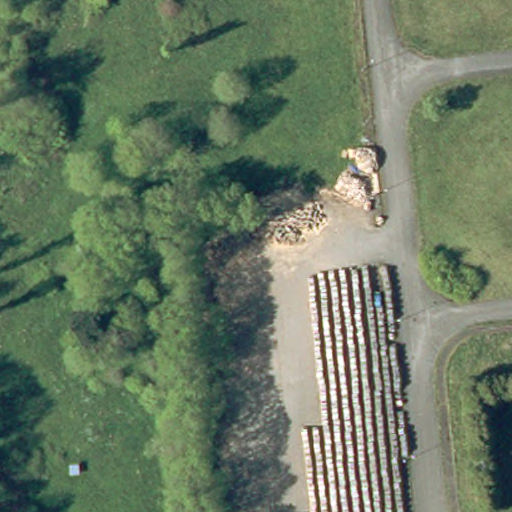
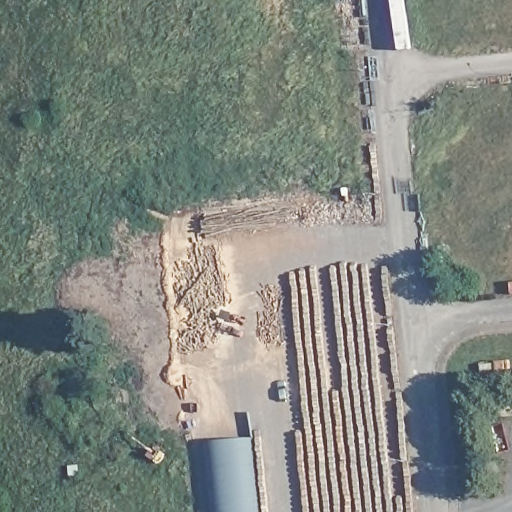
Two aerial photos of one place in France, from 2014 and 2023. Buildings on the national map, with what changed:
new [(260,512),(211,512),(204,440),(253,436),(260,512)]

